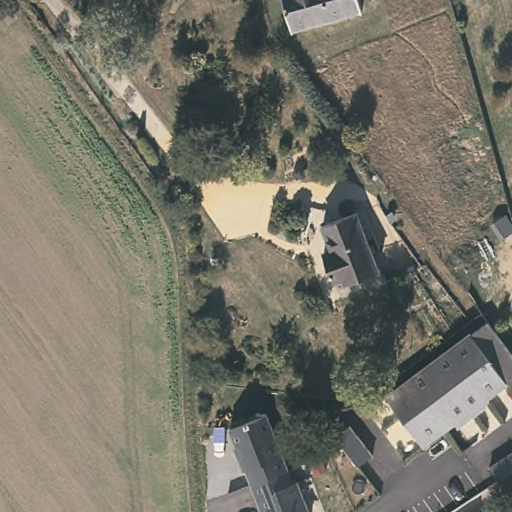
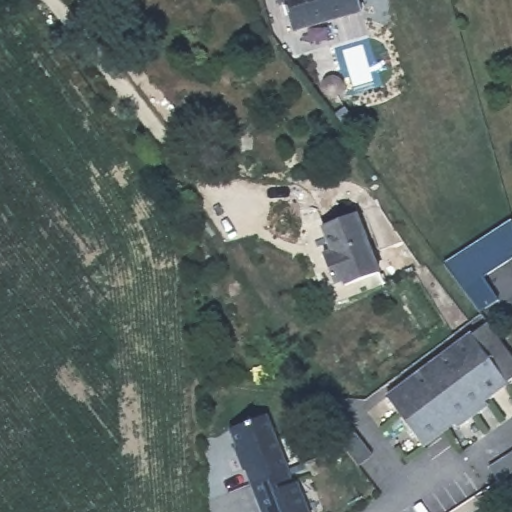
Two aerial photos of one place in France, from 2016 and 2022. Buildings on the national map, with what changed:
unchanged [(366,11),(298,31),(287,0),(363,0),(366,11)]
unchanged [(376,274),(342,281),(337,271),(330,273),(323,242),(332,241),(327,218),(363,211),(376,274)]
new [(511,219),(512,225),(512,257),(482,276),(497,299),(478,312),(442,263),(511,219)]
unchanged [(512,352),(512,379),(486,398),(491,404),(460,427),(456,421),(425,442),(391,396),(491,323),(512,352)]
unchanged [(269,413),(309,512),(261,512),(228,429),(269,413)]
unchanged [(367,446),(375,457),(370,462),(368,463),(360,452),(346,433),(347,431),(352,427),(367,446)]
unchanged [(497,474),(489,461),(512,446),(512,465),(497,474)]

